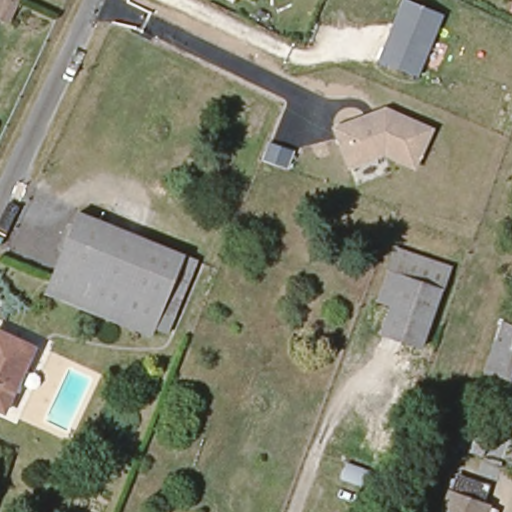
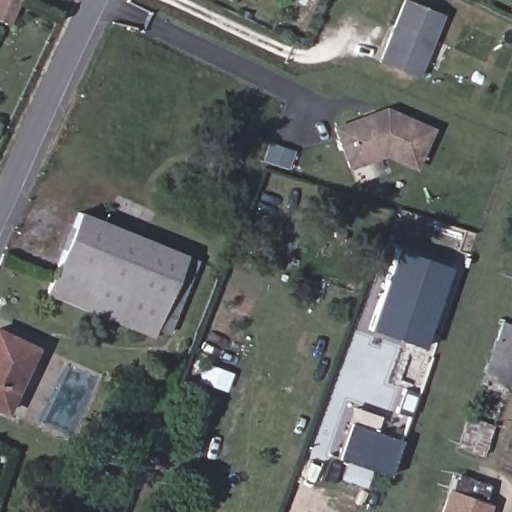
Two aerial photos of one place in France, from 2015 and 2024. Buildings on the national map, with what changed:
unchanged [(0,16),(0,0),(14,0),(6,18),(0,16)]
unchanged [(378,59),(403,0),(441,15),(419,75),(378,59)]
unchanged [(416,169),(384,156),(347,169),(331,128),(385,106),(434,129),(416,169)]
unchanged [(77,209),(92,216),(124,229),(98,290),(97,293),(72,285),(67,299),(45,290),(50,276),(51,275),(73,220),(77,209)]
unchanged [(150,334),(136,328),(67,299),(72,285),(97,293),(98,290),(124,229),(170,249),(196,260),(183,290),(181,294),(177,303),(165,332),(153,327),(150,334)]
unchanged [(380,339),(392,305),(378,300),(398,243),(455,261),(427,350),(380,339)]
unchanged [(488,375),(500,322),(512,327),(512,385),(510,390),(488,375)]
unchanged [(3,409),(0,408),(0,332),(32,347),(3,409)]
new [(349,422),(401,441),(389,476),(337,458),(349,422)]
unchanged [(494,496),(489,512),(455,512),(464,486),(494,496)]

